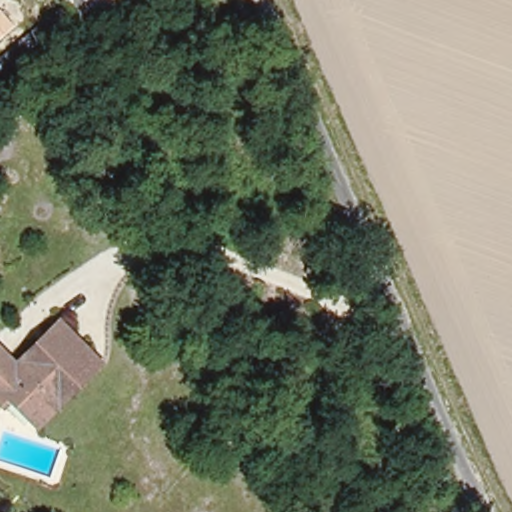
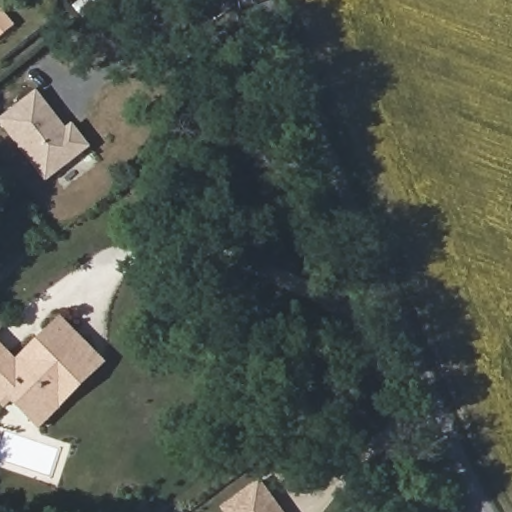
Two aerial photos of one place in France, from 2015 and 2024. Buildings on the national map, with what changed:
new [(62,128),(70,121),(89,145),(44,180),(0,124),(0,115),(35,88),(62,128)]
unchanged [(8,391),(0,399),(0,346),(14,361),(60,317),(94,352),(30,414),(8,391)]
unchanged [(104,362),(40,424),(30,414),(94,352),(104,362)]
new [(223,512),(219,506),(257,476),(283,512),(223,512)]

